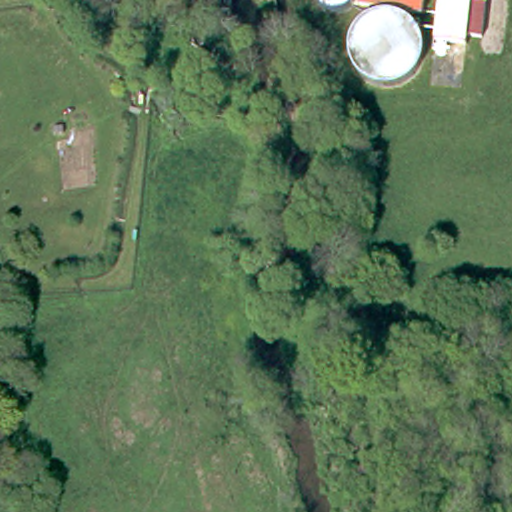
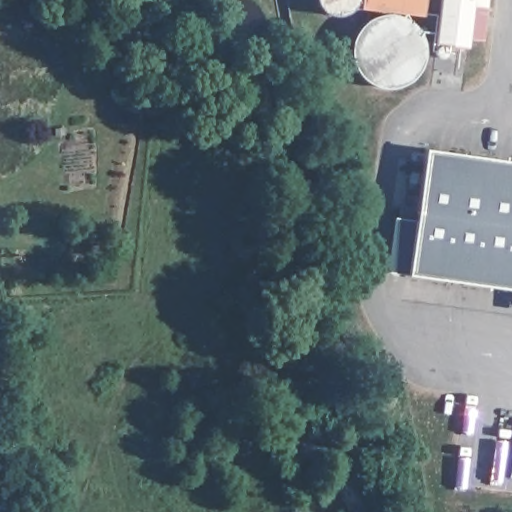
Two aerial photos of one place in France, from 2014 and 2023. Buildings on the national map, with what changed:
unchanged [(418,15),(356,7),(356,0),(419,0),(418,15)]
unchanged [(446,0),(491,0),(490,10),(486,42),(472,40),(471,50),(441,46),(446,0)]
new [(408,275),(408,272),(415,220),(425,147),(512,160),(512,288),(408,275)]
new [(415,220),(408,272),(388,270),(395,217),(415,220)]

